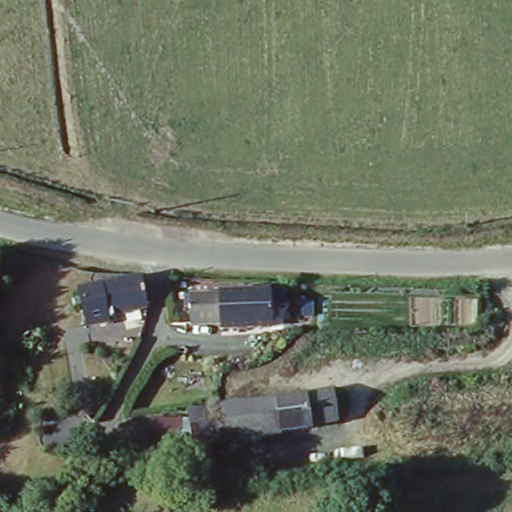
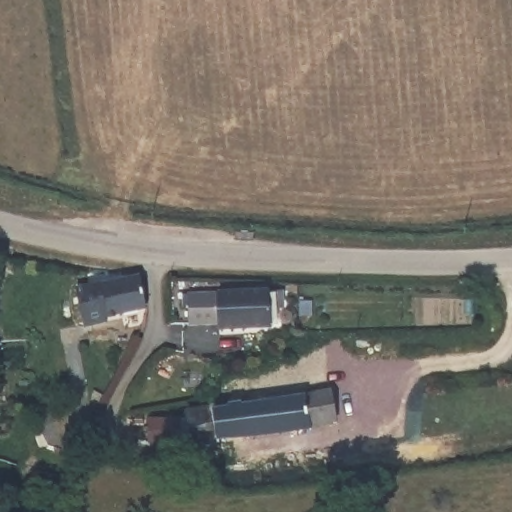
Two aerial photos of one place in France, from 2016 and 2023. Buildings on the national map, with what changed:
unchanged [(143,303),(113,311),(113,316),(86,323),(75,285),(139,279),(143,303)]
unchanged [(271,294),(272,329),(222,329),(222,324),(191,324),(191,306),(186,306),(186,294),(271,294)]
unchanged [(165,420),(207,419),(206,412),(226,409),(344,390),(350,423),(232,443),(209,443),(166,442),(165,420)]

